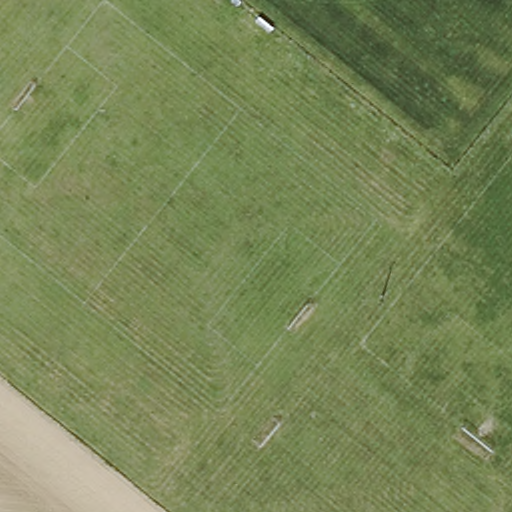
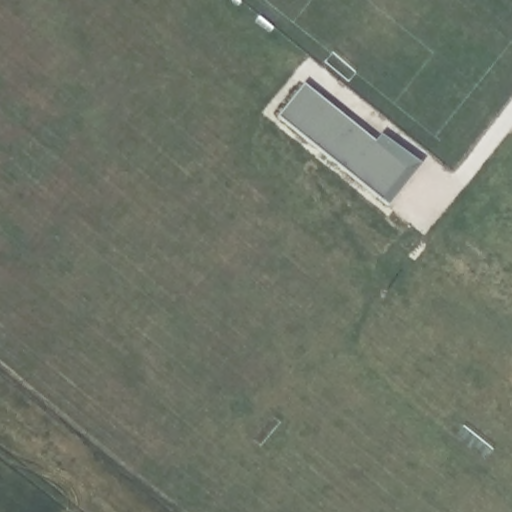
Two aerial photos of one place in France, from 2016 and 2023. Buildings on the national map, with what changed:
new [(376,142),(407,168),(383,199),(278,116),(304,84),(376,142)]

